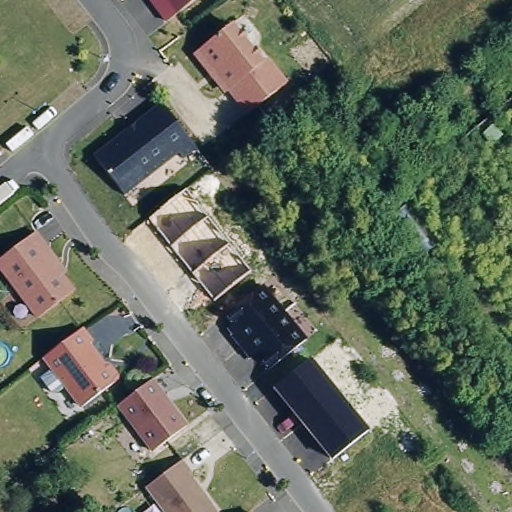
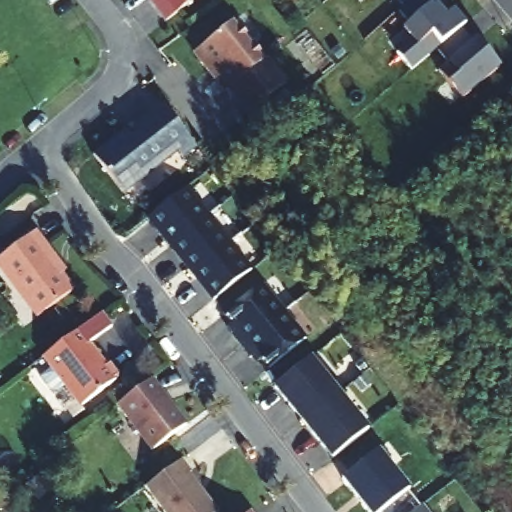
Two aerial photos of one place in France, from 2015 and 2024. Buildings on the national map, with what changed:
unchanged [(162,22),(145,0),(190,0),(162,22)]
new [(399,6),(394,0),(406,0),(399,6)]
new [(406,0),(427,0),(441,17),(449,10),(462,24),(408,70),(394,53),(409,40),(399,29),(406,23),(394,10),(399,6),(406,0)]
unchanged [(244,114),(226,90),(223,92),(212,78),(214,76),(209,70),(204,73),(196,64),(194,61),(198,58),(193,52),(228,25),(258,63),(263,59),(283,84),(244,114)]
new [(435,70),(445,62),(433,48),(457,28),(480,55),(485,51),(498,66),(459,98),(435,70)]
unchanged [(93,157),(160,104),(195,148),(181,158),(176,151),(122,194),(93,157)]
unchanged [(188,190),(251,272),(213,303),(148,221),(188,190)]
unchanged [(38,319),(0,270),(0,260),(34,233),(44,247),(41,250),(73,292),(38,319)]
unchanged [(368,425),(328,458),(271,389),(279,381),(260,356),(253,361),(217,311),(257,283),(368,425)]
unchanged [(81,330),(92,344),(88,346),(98,358),(96,359),(102,367),(103,366),(109,367),(116,377),(116,382),(81,408),(65,387),(57,394),(51,393),(40,379),(53,370),(44,359),(81,330)]
unchanged [(151,380),(186,426),(153,452),(118,406),(151,380)]
new [(371,512),(344,479),(378,452),(410,490),(408,492),(422,507),(415,512),(371,512)]
unchanged [(182,460),(192,473),(189,475),(218,512),(164,512),(146,488),(162,476),(182,460)]
new [(425,505),(431,512),(415,512),(422,507),(425,505)]

